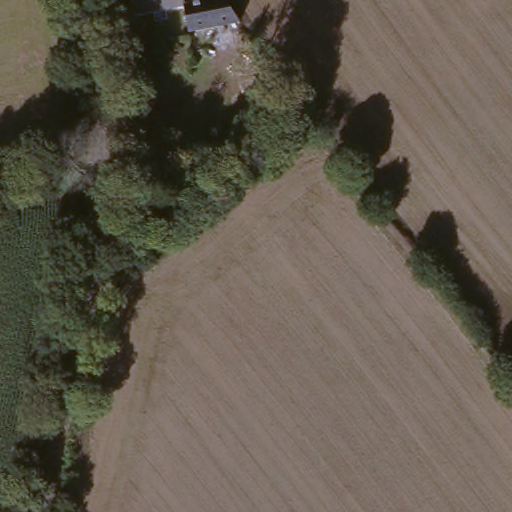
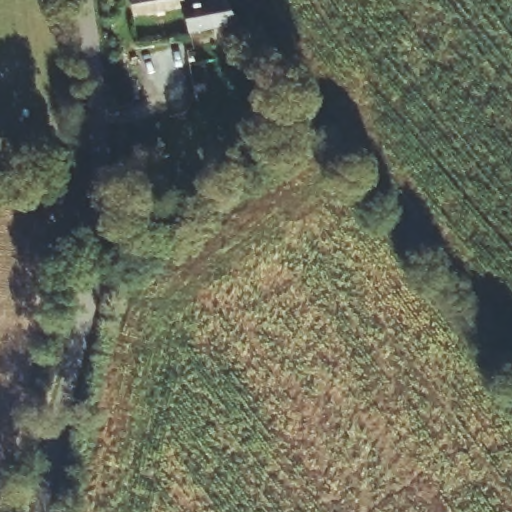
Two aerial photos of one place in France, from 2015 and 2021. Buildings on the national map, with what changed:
unchanged [(237,22),(184,32),(179,17),(136,23),(131,0),(222,0),(237,22)]

